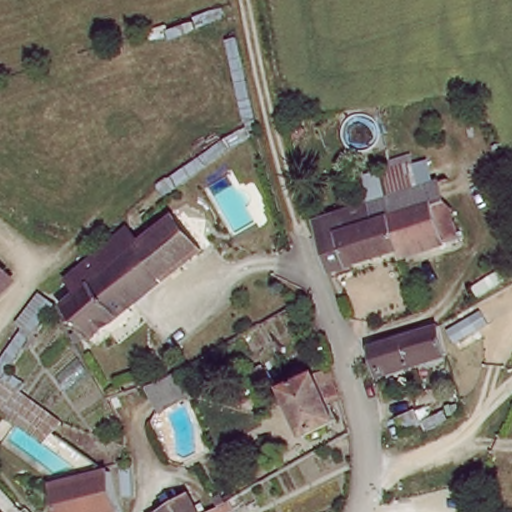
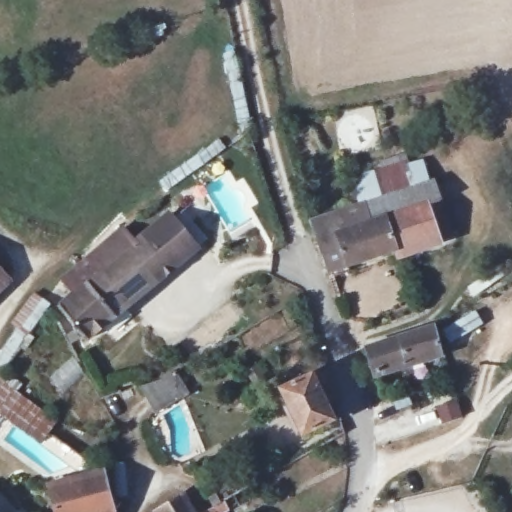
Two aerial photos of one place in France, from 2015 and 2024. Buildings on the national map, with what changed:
unchanged [(371,185),(421,167),(439,218),(387,236),(371,185)]
unchanged [(387,236),(320,259),(304,208),(353,191),(371,185),(387,236)]
unchanged [(128,224),(141,238),(174,211),(203,244),(92,336),(63,302),(81,287),(70,274),(128,224)]
unchanged [(55,298),(55,299),(49,307),(35,327),(20,316),(40,288),(55,298)]
unchanged [(433,325),(441,351),(377,371),(368,345),(433,325)]
unchanged [(334,392),(325,395),(335,422),(302,435),(282,386),(327,368),(334,392)]
unchanged [(145,389),(144,387),(176,370),(190,395),(159,413),(145,389)]
unchanged [(57,423),(42,446),(0,417),(0,383),(57,423)]
unchanged [(47,478),(107,462),(106,464),(105,465),(117,504),(115,512),(87,512),(87,511),(83,512),(55,512),(47,481),(47,478)]
unchanged [(178,490),(190,511),(208,501),(215,512),(139,512),(151,505),(178,490)]
unchanged [(14,512),(0,512),(0,495),(14,512)]

